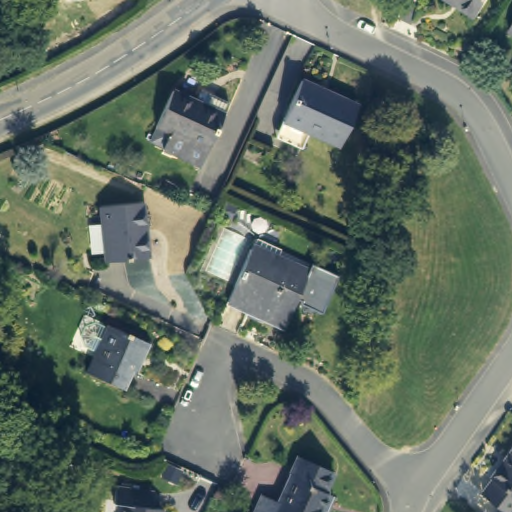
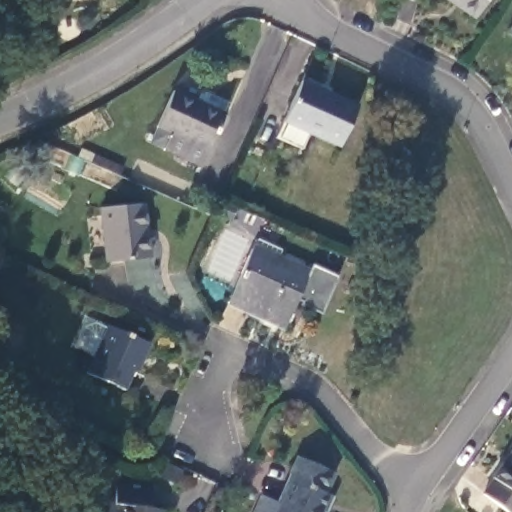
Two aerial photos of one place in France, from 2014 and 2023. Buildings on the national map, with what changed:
unchanged [(452,0),(482,0),(473,13),(452,0)]
unchanged [(512,28),(512,31),(510,30),(512,28)]
unchanged [(281,139),(288,123),(307,79),(362,104),(344,147),(313,133),(306,150),(281,139)]
unchanged [(200,86),(229,99),(222,117),(200,167),(162,151),(170,133),(155,127),(171,92),(194,101),(200,86)]
unchanged [(146,205),(153,261),(107,266),(101,210),(146,205)]
unchanged [(301,301),(302,299),(298,297),(287,325),(229,302),(248,254),(254,238),(280,248),(274,264),(285,268),(288,260),(308,268),(311,261),(339,271),(323,310),(301,301)]
unchanged [(139,374),(133,371),(125,388),(85,372),(94,350),(82,345),(79,335),(83,325),(93,322),(104,327),(105,324),(150,344),(139,374)]
unchanged [(494,478),(490,476),(512,444),(512,512),(509,512),(484,497),(494,478)]
unchanged [(330,470),(323,493),(326,495),(319,512),(258,512),(263,500),(274,504),(296,456),(330,470)]
unchanged [(120,498),(115,498),(115,485),(152,488),(151,506),(161,507),(160,512),(119,512),(120,498)]

